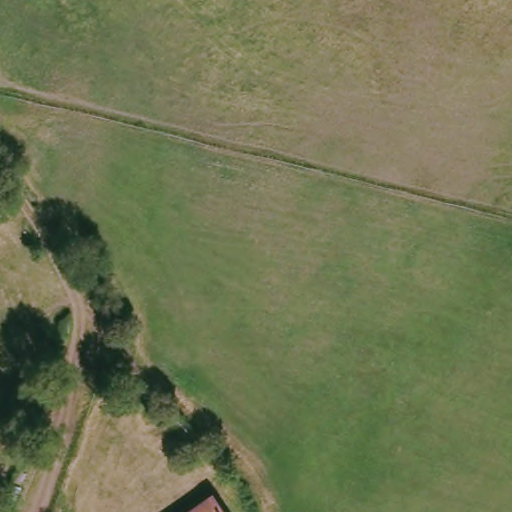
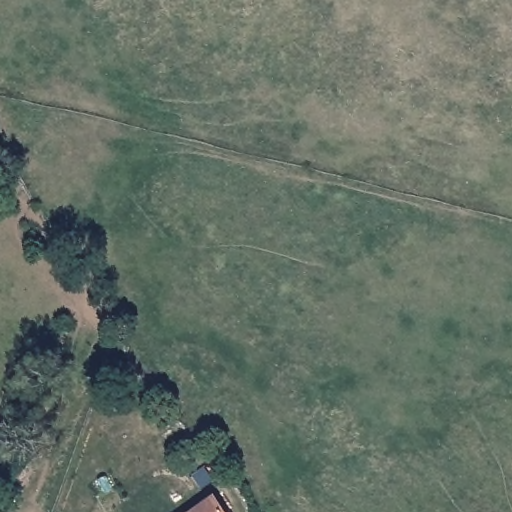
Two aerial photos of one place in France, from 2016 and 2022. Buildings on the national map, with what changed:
unchanged [(229,512),(188,512),(215,492),(229,512)]

